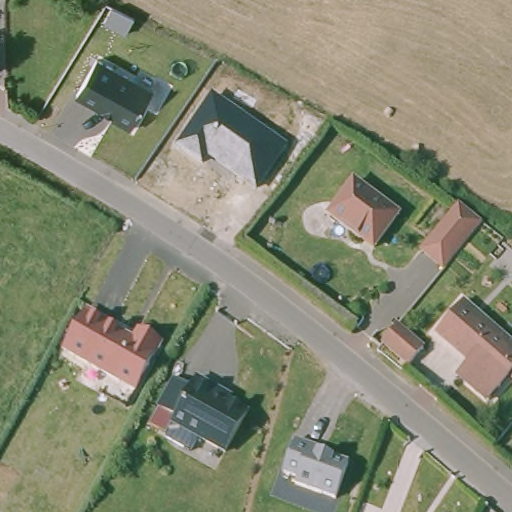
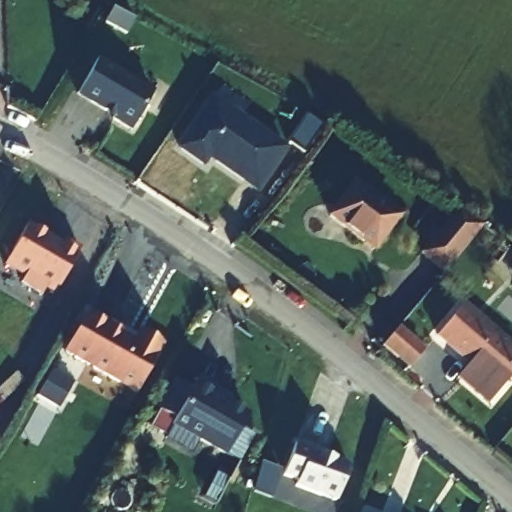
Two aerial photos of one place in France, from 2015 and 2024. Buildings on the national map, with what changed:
unchanged [(77,96),(98,58),(153,91),(130,130),(112,120),(113,117),(77,96)]
unchanged [(287,147),(255,192),(208,159),(202,167),(174,147),(211,93),(287,147)]
unchanged [(347,183),(392,216),(373,243),(362,236),(360,239),(326,215),(347,183)]
unchanged [(458,209),(479,226),(442,270),(421,253),(458,209)]
new [(28,223),(66,245),(67,240),(80,247),(57,288),(55,287),(52,292),(45,289),(42,293),(21,282),(24,277),(3,265),(28,223)]
unchanged [(505,247),(512,253),(512,281),(492,265),(505,247)]
unchanged [(455,374),(467,360),(435,333),(462,301),(512,342),(512,369),(486,400),(455,374)]
unchanged [(86,310),(108,322),(107,324),(133,339),(135,335),(157,347),(134,388),(64,349),(86,310)]
unchanged [(422,353),(408,370),(381,347),(395,330),(422,353)]
new [(36,396),(52,368),(75,382),(59,409),(36,396)]
unchanged [(225,448),(173,419),(176,414),(160,404),(175,375),(192,384),(197,375),(217,386),(215,391),(247,408),(225,448)]
unchanged [(336,501),(295,486),(297,481),(283,476),(295,444),(315,451),(314,454),(348,466),(336,501)]

